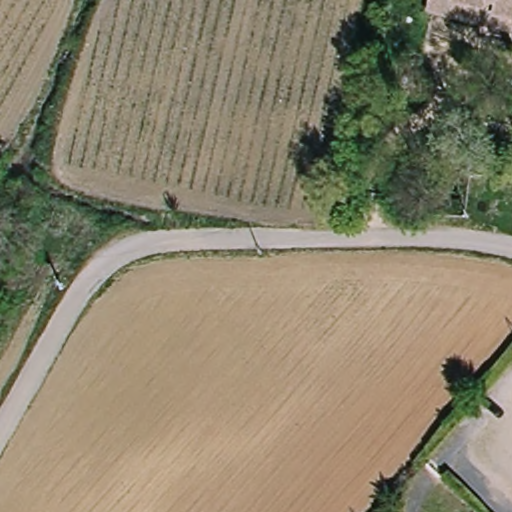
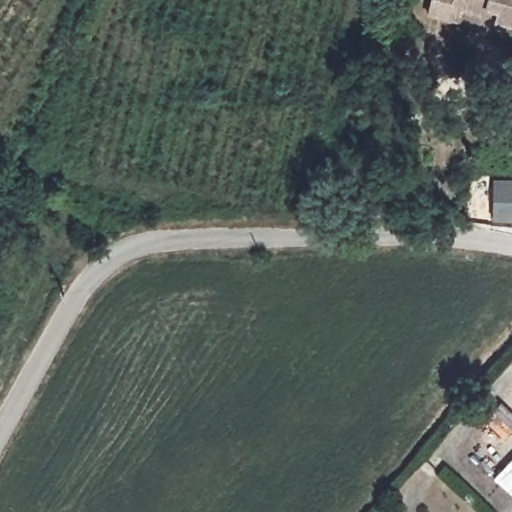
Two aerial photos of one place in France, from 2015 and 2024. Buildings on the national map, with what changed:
unchanged [(457,13),(437,9),(438,0),(512,0),(512,25),(456,19),(457,13)]
new [(492,176),(512,176),(512,219),(492,219),(492,176)]

